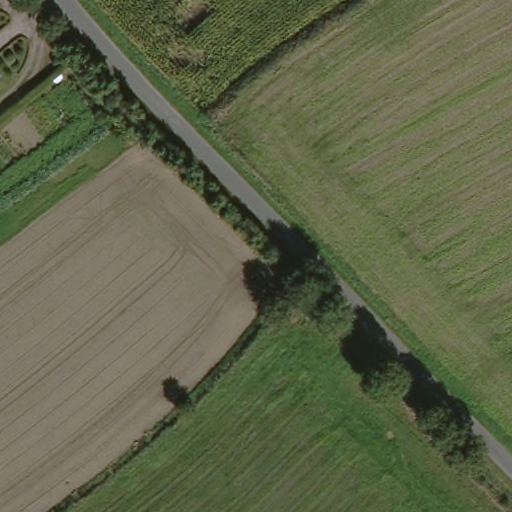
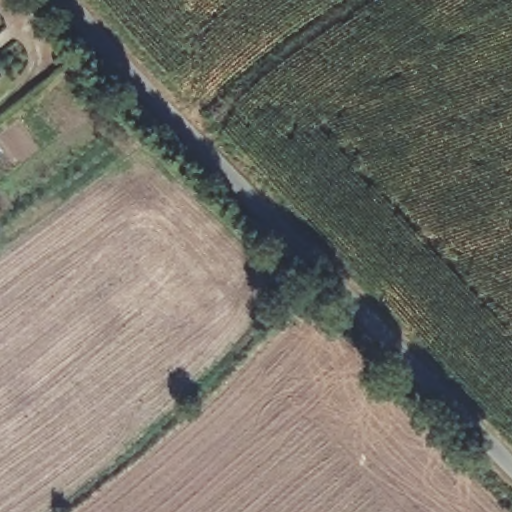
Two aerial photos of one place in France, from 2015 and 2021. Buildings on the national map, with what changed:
unchanged [(6,73),(0,78),(0,66),(6,73)]

